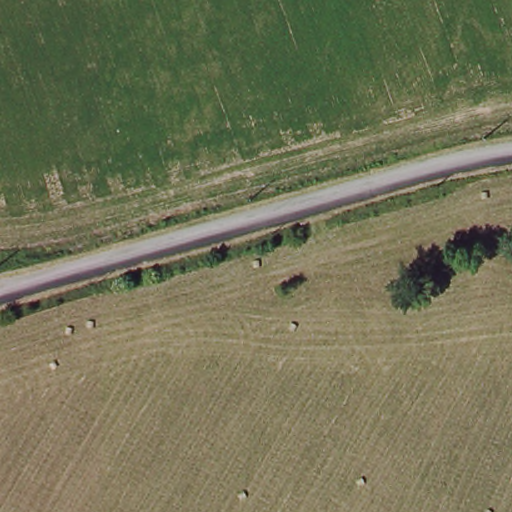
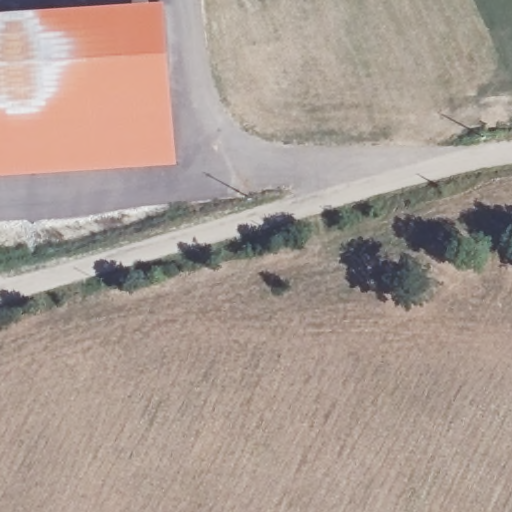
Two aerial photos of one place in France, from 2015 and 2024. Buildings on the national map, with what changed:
new [(166,0),(172,111),(136,113),(93,118),(93,138),(90,138),(90,140),(85,140),(85,142),(78,143),(78,144),(77,144),(80,170),(0,175),(0,10),(144,0),(166,0)]

